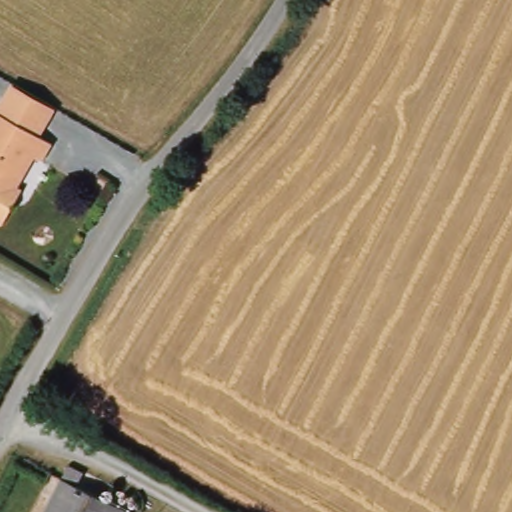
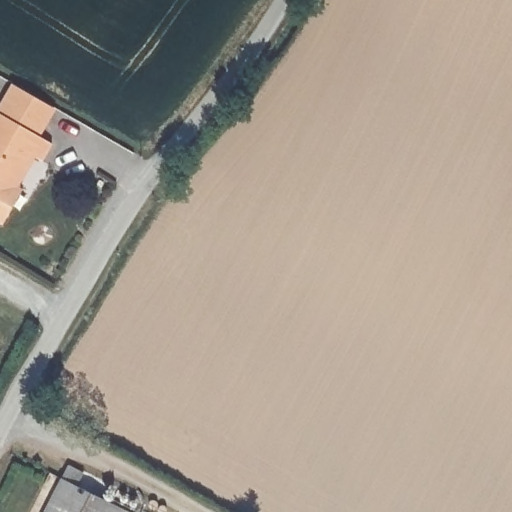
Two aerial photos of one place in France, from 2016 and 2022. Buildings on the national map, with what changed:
unchanged [(0,103),(11,84),(55,109),(39,136),(51,144),(38,164),(33,161),(18,187),(22,189),(1,225),(0,224),(0,103)]
unchanged [(86,486),(132,512),(54,512),(79,467),(93,474),(86,486)]

